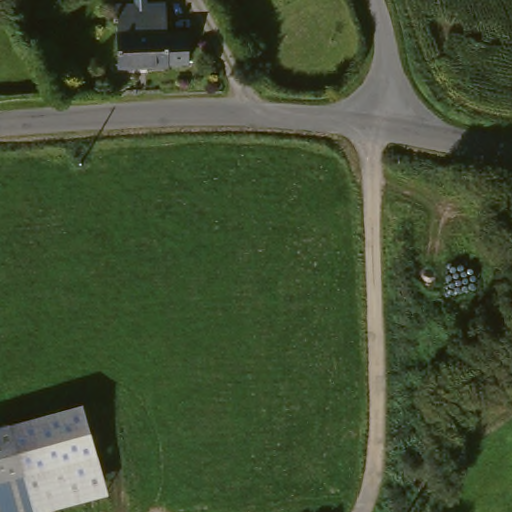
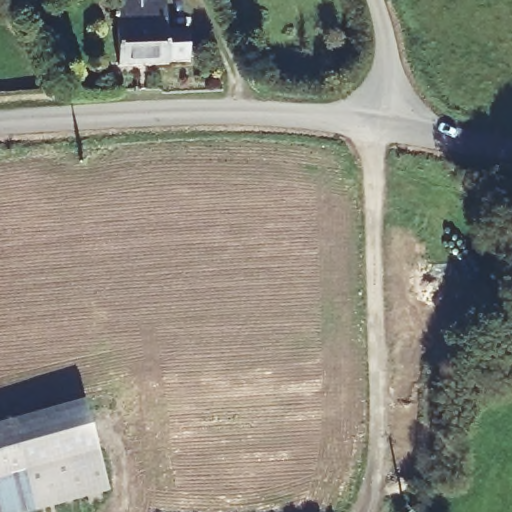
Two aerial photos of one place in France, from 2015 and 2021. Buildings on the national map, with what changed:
unchanged [(120,15),(120,3),(154,2),(154,8),(164,8),(164,31),(189,31),(189,59),(162,59),(162,64),(116,63),(116,15),(120,15)]
unchanged [(108,505),(75,512),(0,512),(0,432),(86,410),(108,505)]

